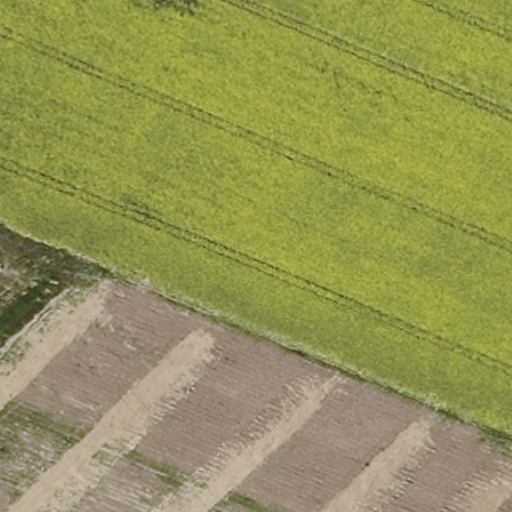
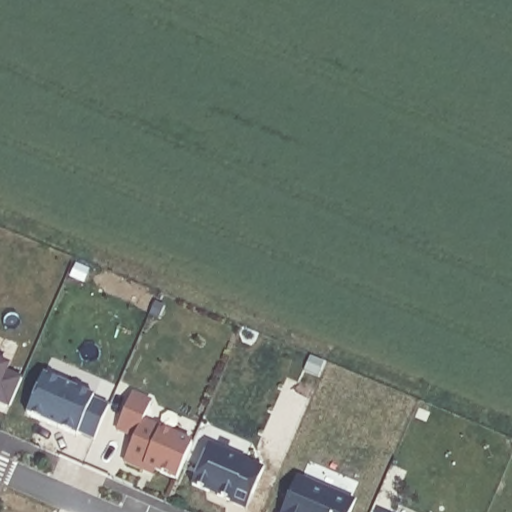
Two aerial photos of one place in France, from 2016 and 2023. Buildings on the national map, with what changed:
new [(0,405),(0,362),(10,366),(8,374),(23,378),(10,408),(0,405)]
new [(93,401),(109,406),(93,441),(78,436),(27,414),(43,374),(95,396),(93,401)]
new [(143,421),(160,428),(193,442),(176,480),(154,471),(152,476),(122,464),(132,440),(117,433),(132,393),(151,402),(143,421)]
new [(245,510),(228,504),(230,501),(192,488),(208,445),(263,468),(245,510)]
new [(282,512),(297,477),(355,501),(350,512),(282,512)]

